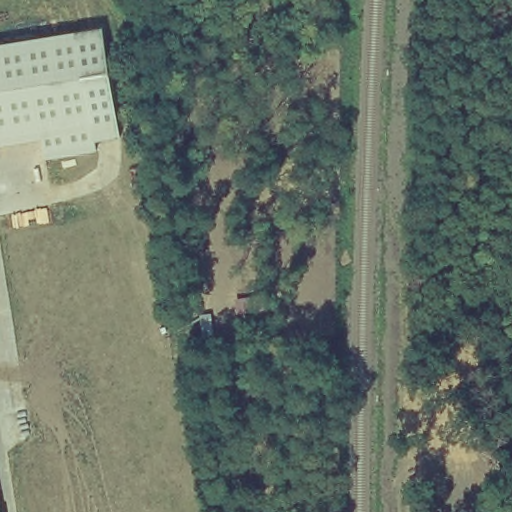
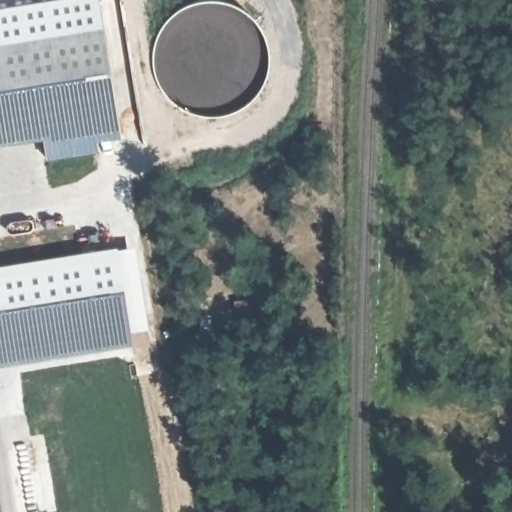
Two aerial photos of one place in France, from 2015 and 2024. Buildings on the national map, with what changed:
new [(0,48),(0,9),(63,0),(100,0),(105,32),(80,36),(0,48)]
unchanged [(105,32),(122,140),(95,144),(80,36),(105,32)]
unchanged [(95,144),(97,153),(49,162),(44,132),(0,139),(0,48),(80,36),(95,144)]
new [(120,251),(134,249),(147,328),(132,331),(120,251)]
new [(132,331),(0,356),(0,273),(120,251),(132,331)]
unchanged [(0,512),(0,447),(9,512),(0,512)]

